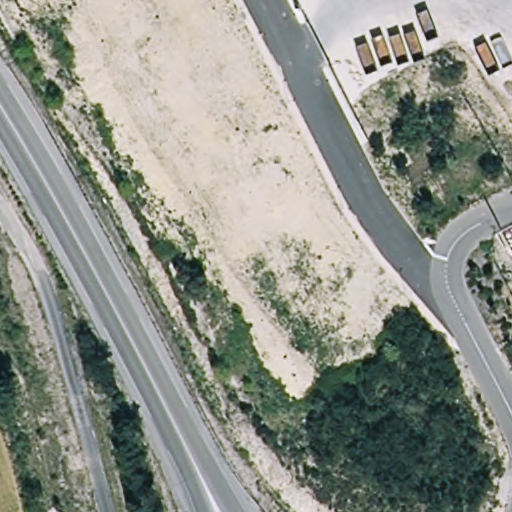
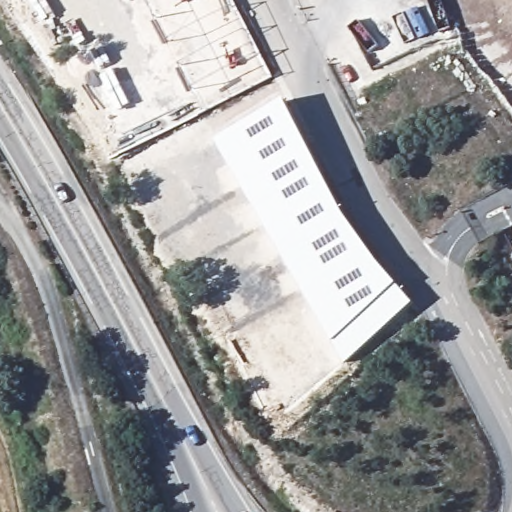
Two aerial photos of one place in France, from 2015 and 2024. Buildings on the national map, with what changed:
new [(216,140),(286,99),(344,212),(379,263),(414,303),(346,363),(216,140)]

